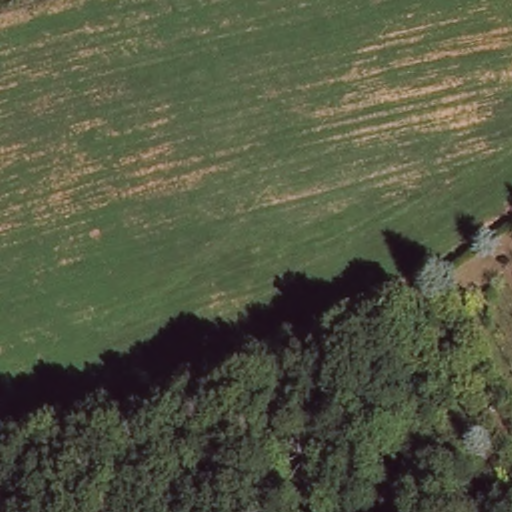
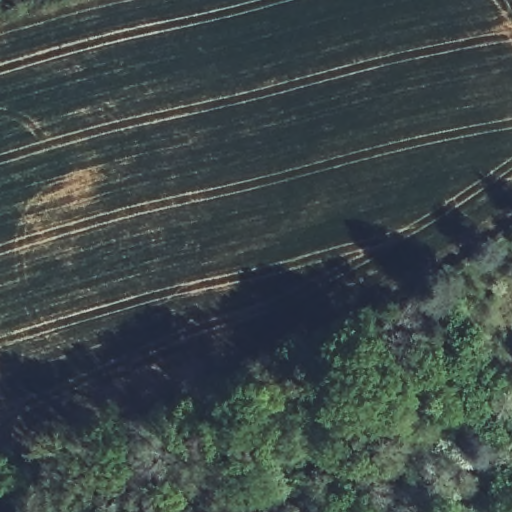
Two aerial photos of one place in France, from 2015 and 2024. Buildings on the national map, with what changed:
[]

